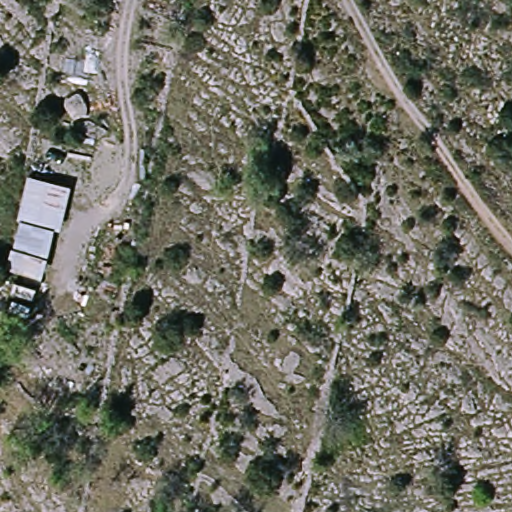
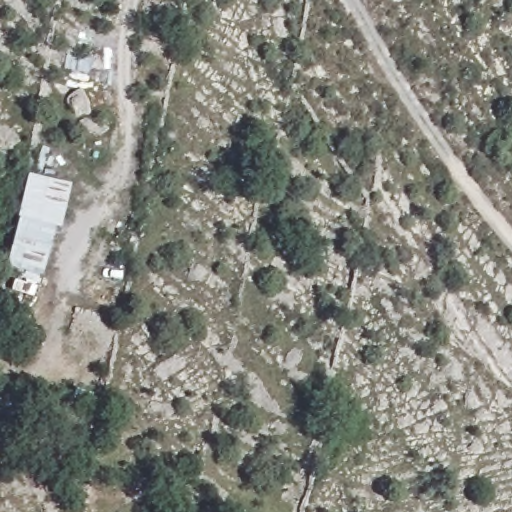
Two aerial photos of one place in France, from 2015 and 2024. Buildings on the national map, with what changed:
unchanged [(32,174),(74,184),(66,228),(57,227),(44,272),(11,264),(32,174)]

